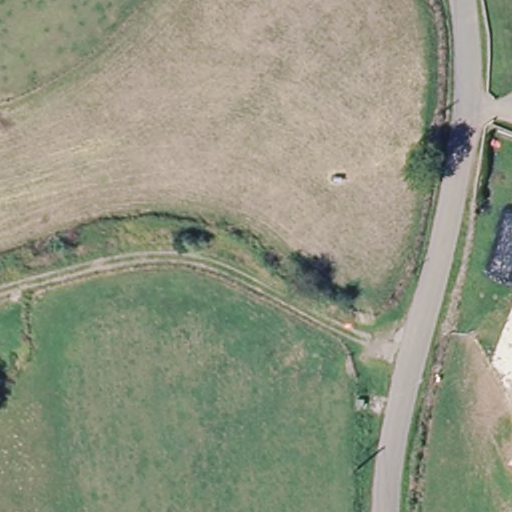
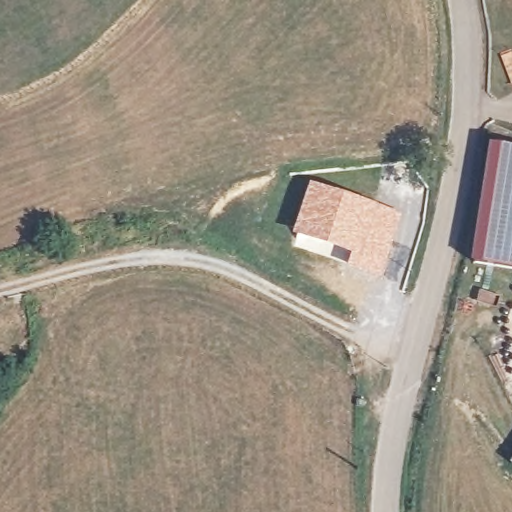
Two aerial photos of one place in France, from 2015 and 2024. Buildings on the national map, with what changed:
new [(512,146),(512,269),(473,263),(490,143),(512,146)]
new [(310,181),(402,215),(381,278),(347,266),(351,255),(292,234),(310,181)]
unchanged [(507,457),(512,450),(512,461),(507,457)]

